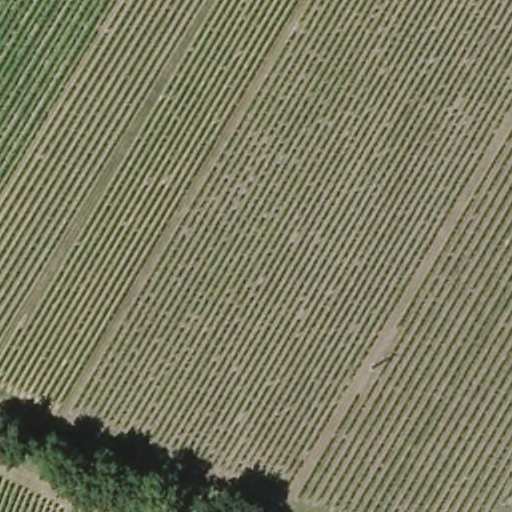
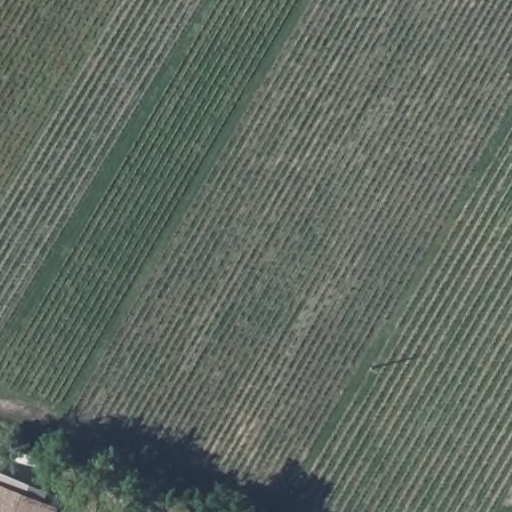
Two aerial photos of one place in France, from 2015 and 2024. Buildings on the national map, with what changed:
new [(0,512),(0,484),(56,506),(54,512),(0,512)]

